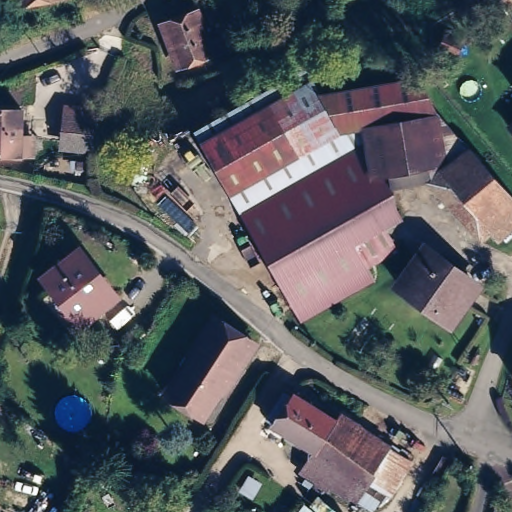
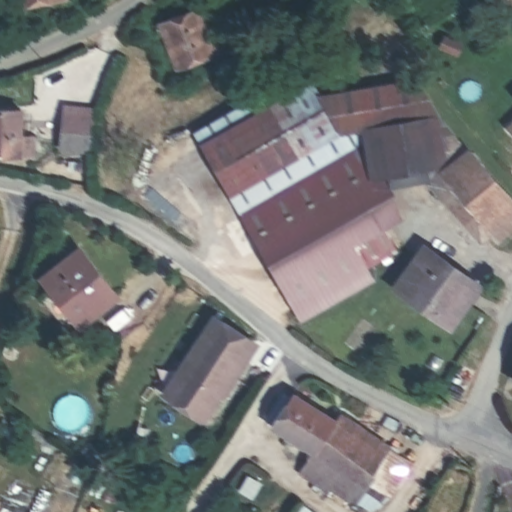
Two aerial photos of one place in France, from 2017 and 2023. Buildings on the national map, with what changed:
unchanged [(73,12),(65,14),(62,5),(10,15),(8,0),(76,0),(77,3),(72,4),(73,12)]
unchanged [(209,43),(212,53),(179,66),(170,43),(162,21),(182,14),(177,0),(192,0),(195,8),(205,34),(212,32),(215,41),(209,43)]
unchanged [(422,79),(469,154),(512,203),(512,239),(503,246),(492,233),(483,240),(432,185),(452,169),(377,185),(357,151),(325,95),(422,79)]
unchanged [(315,81),(325,95),(357,151),(242,210),(204,141),(315,81)]
unchanged [(67,107),(100,109),(95,154),(62,151),(67,107)]
unchanged [(0,153),(0,109),(17,108),(17,132),(30,132),(30,152),(0,153)]
unchanged [(357,151),(377,185),(372,188),(391,223),(353,244),(372,282),(302,321),(242,210),(357,151)]
unchanged [(394,254),(380,244),(387,234),(400,244),(394,254)]
unchanged [(475,280),(448,316),(395,277),(421,241),(475,280)]
unchanged [(75,247),(115,295),(79,322),(40,274),(75,247)]
unchanged [(202,419),(165,396),(173,385),(165,379),(169,373),(177,378),(217,317),(252,339),(202,419)]
unchanged [(382,444),(359,480),(355,485),(349,494),(347,493),(300,464),(309,450),(267,424),(287,393),(329,418),(332,414),(382,444)]
unchanged [(359,480),(382,444),(409,460),(382,501),(355,485),(359,480)]

